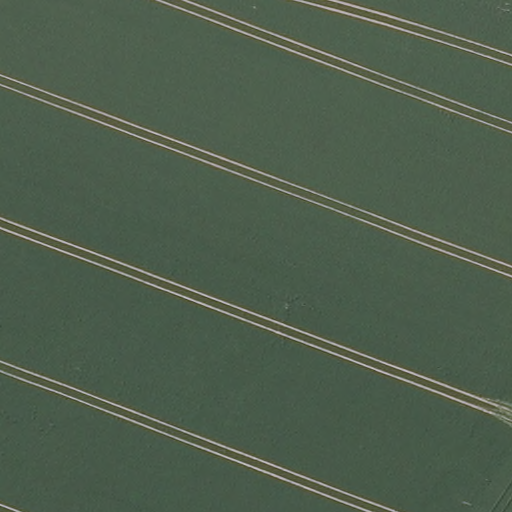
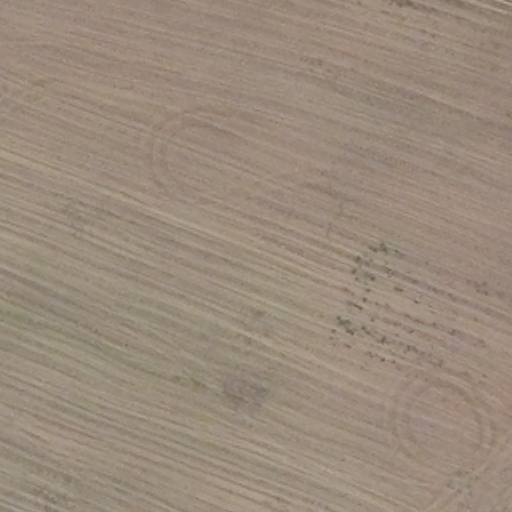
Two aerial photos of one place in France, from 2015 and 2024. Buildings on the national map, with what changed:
[]

